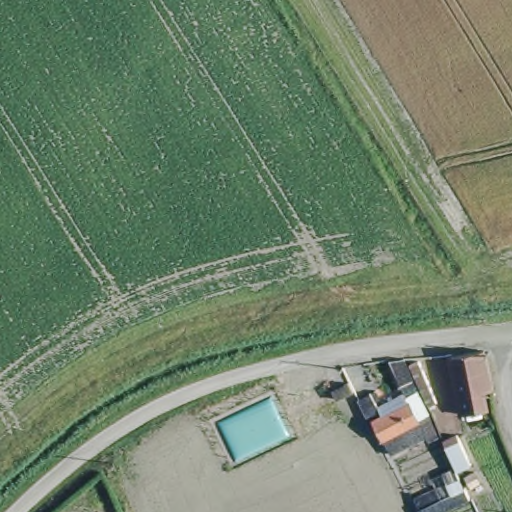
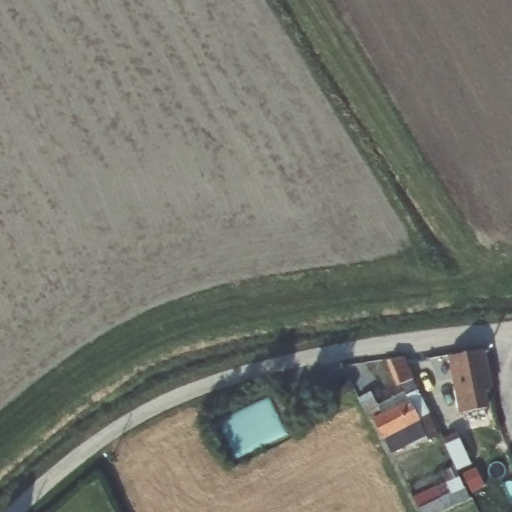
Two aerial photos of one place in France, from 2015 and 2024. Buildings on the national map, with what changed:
unchanged [(488,386),(491,400),(462,407),(450,352),(484,343),(492,386),(488,386)]
unchanged [(371,396),(377,408),(401,398),(385,365),(401,363),(437,438),(427,444),(424,440),(389,457),(370,422),(367,423),(356,403),(371,396)]
unchanged [(412,373),(421,371),(441,414),(433,418),(412,373)]
unchanged [(443,433),(457,429),(470,457),(457,463),(443,433)]

